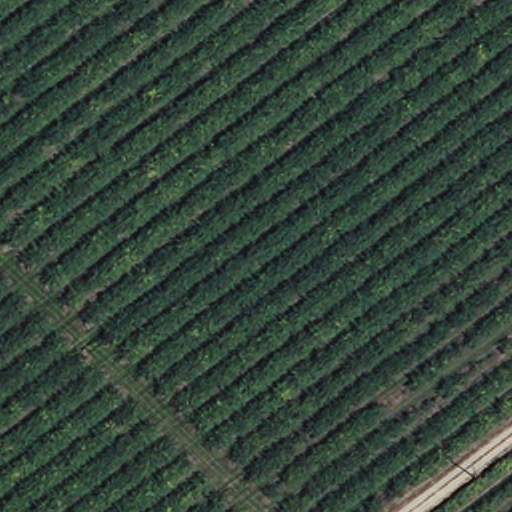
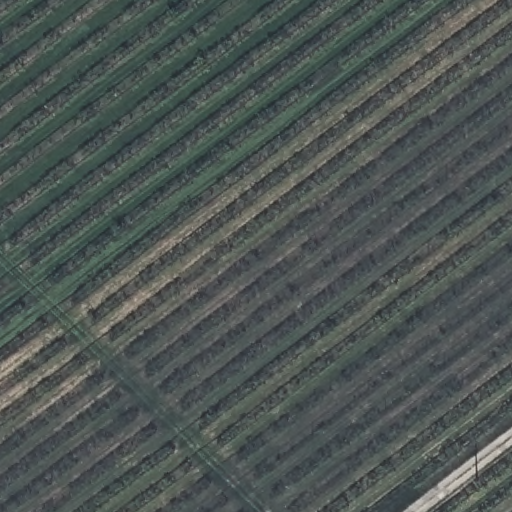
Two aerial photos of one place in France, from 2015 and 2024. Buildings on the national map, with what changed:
[]

